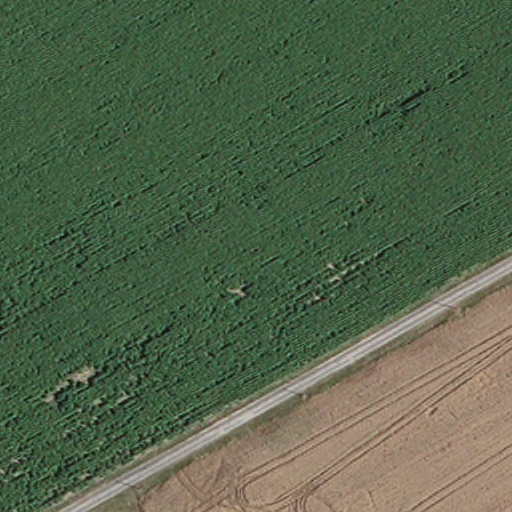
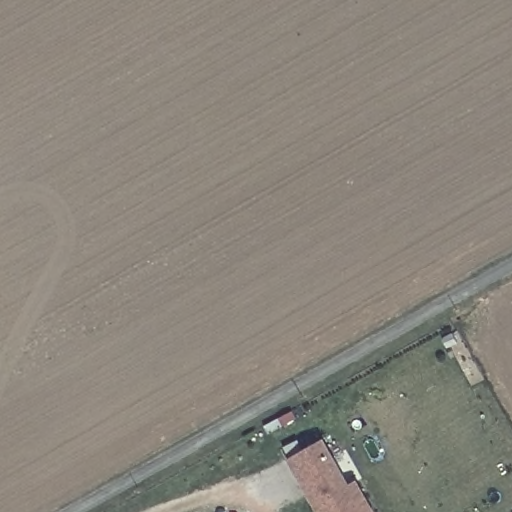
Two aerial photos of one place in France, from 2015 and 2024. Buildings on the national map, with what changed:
new [(324,440),(347,485),(355,481),(373,512),(320,512),(289,459),(324,440)]

